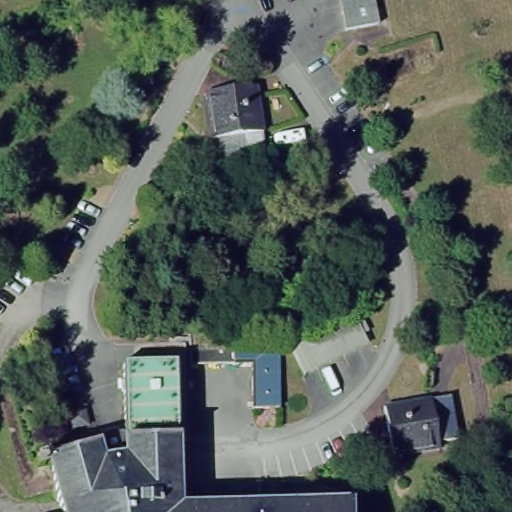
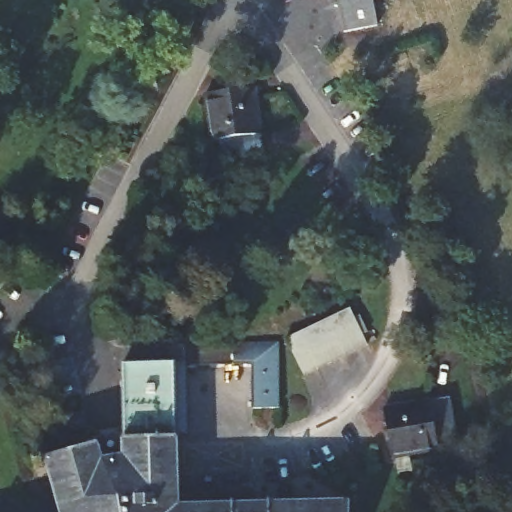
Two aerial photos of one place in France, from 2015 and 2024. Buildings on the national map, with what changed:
unchanged [(340,27),(334,0),(369,0),(372,20),(340,27)]
unchanged [(219,135),(212,136),(205,89),(255,82),(264,149),(229,153),(221,154),(219,135)]
unchanged [(281,334),(345,303),(362,339),(299,369),(281,334)]
unchanged [(230,338),(274,338),(275,403),(248,403),(247,358),(186,358),(186,346),(230,345),(230,338)]
unchanged [(42,454),(93,439),(119,435),(117,359),(152,358),(151,339),(180,339),(180,359),(182,428),(172,429),(175,503),(346,499),(346,512),(58,512),(42,454)]
unchanged [(437,443),(439,451),(392,458),(384,408),(450,397),(457,440),(437,443)]

